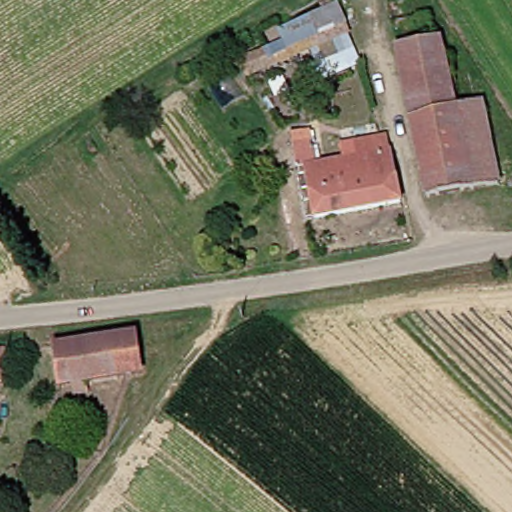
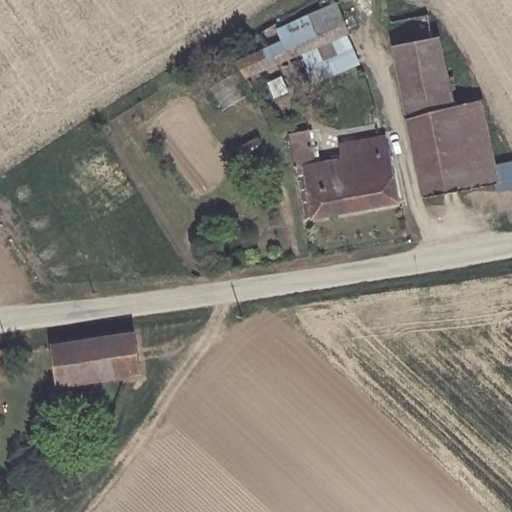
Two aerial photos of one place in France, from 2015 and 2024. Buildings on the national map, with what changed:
unchanged [(360,60),(326,72),(317,47),(246,74),(237,56),(283,36),(276,23),(339,0),(340,0),(360,60)]
unchanged [(432,195),(392,21),(427,13),(433,38),(440,37),(451,73),(458,72),(460,82),(455,83),(462,109),(486,103),(505,181),(432,195)]
unchanged [(315,212),(290,130),(315,126),(321,157),(357,153),(353,139),(386,132),(402,198),(315,212)]
unchanged [(59,381),(55,343),(136,334),(141,371),(59,381)]
unchanged [(5,346),(9,370),(0,372),(0,347),(5,346)]

